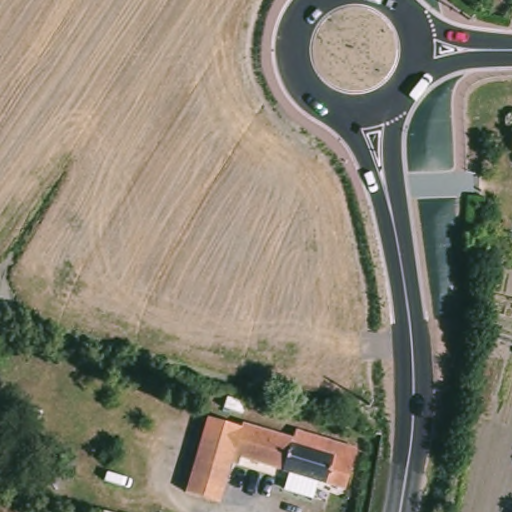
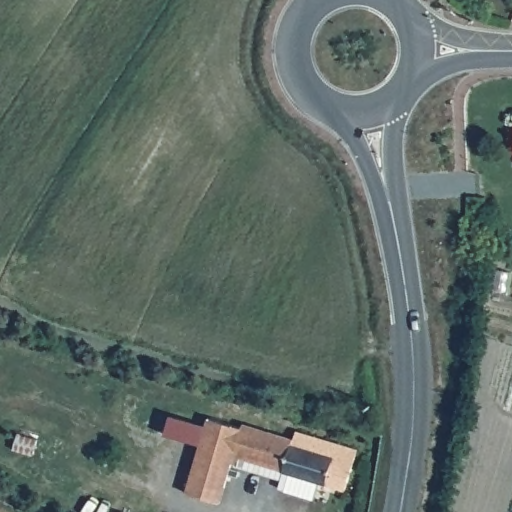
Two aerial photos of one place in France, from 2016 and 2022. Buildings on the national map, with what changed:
unchanged [(354,492),(242,459),(240,467),(240,466),(233,464),(221,504),(188,494),(209,419),(243,429),(244,426),(252,428),(295,441),(297,432),(366,452),(354,492)]

